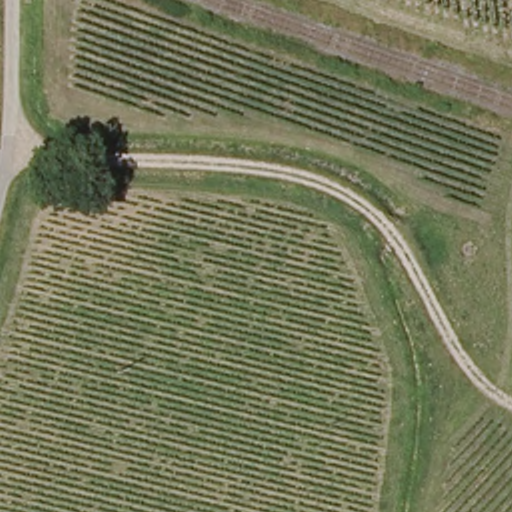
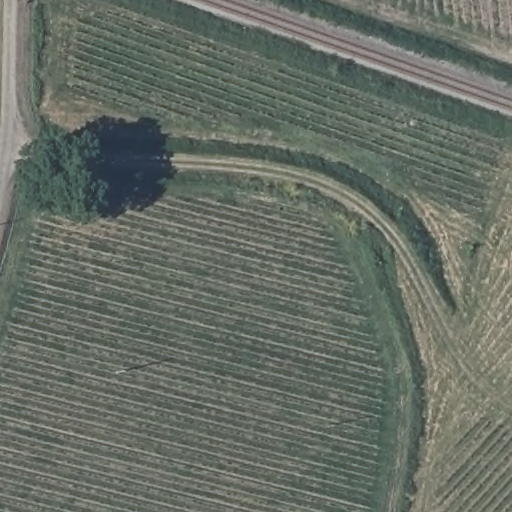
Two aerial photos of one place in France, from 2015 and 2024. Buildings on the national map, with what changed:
[]

